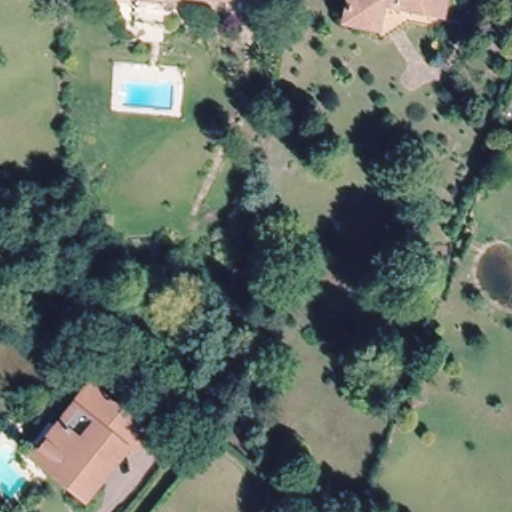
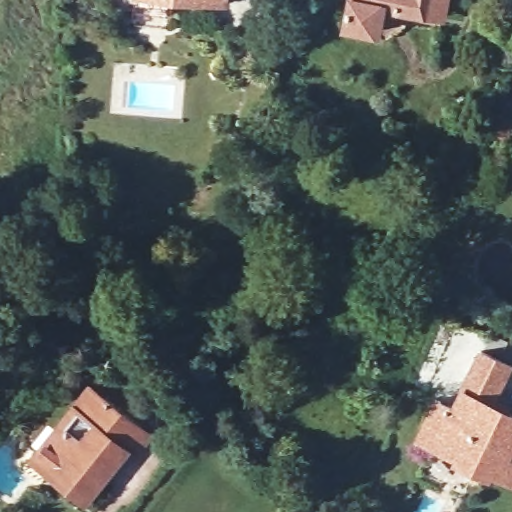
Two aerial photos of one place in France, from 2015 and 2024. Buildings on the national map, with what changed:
unchanged [(339,12),(341,0),(434,0),(431,13),(400,8),(382,21),(339,12)]
new [(491,473),(489,478),(450,460),(452,454),(413,438),(433,394),(452,401),(460,383),(478,343),(510,359),(495,399),(512,407),(512,483),(491,473)]
unchanged [(134,454),(125,447),(86,495),(33,451),(55,424),(88,383),(103,395),(150,432),(134,454)]

